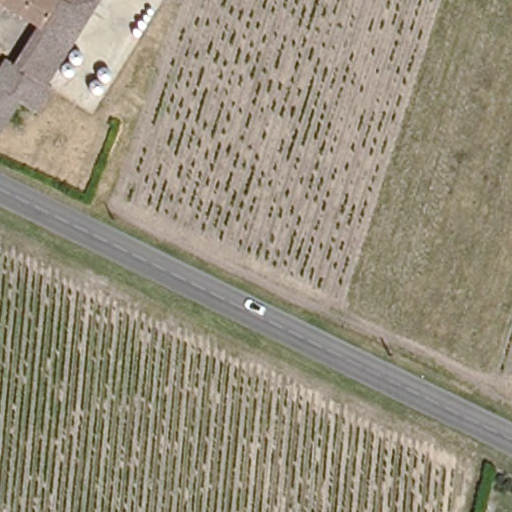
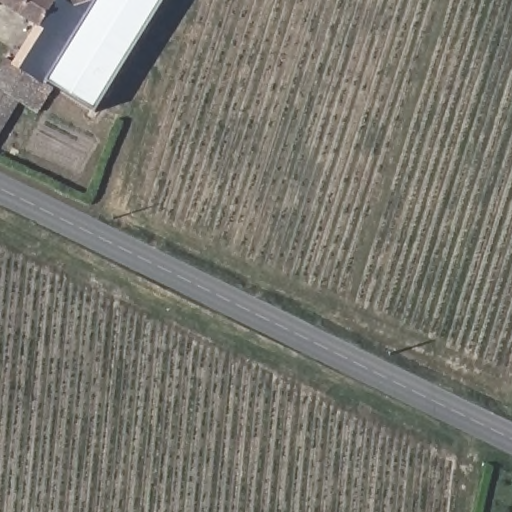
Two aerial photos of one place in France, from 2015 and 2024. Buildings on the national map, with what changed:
unchanged [(0,5),(0,0),(3,0),(0,5)]
unchanged [(48,82),(48,83),(56,88),(40,114),(21,102),(9,122),(2,133),(0,137),(0,69),(8,55),(18,61),(39,22),(4,0),(100,0),(48,82)]
new [(93,112),(56,88),(48,83),(48,82),(100,0),(164,0),(93,112)]

